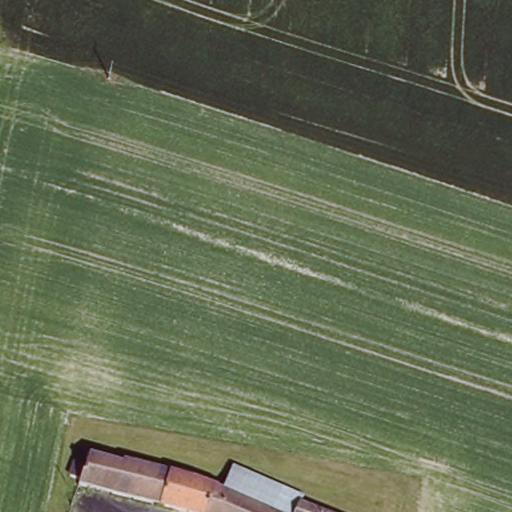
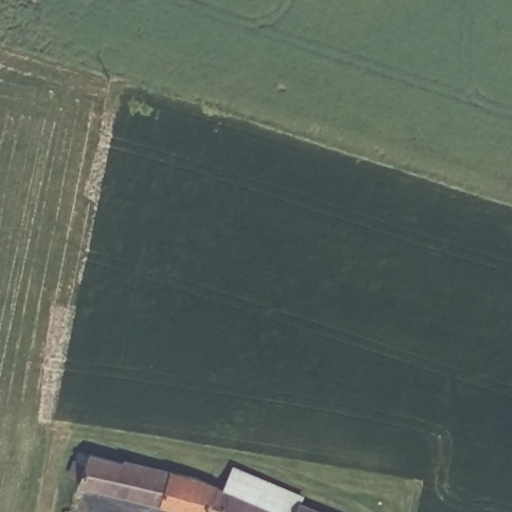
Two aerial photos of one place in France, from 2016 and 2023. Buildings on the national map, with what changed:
unchanged [(80,486),(91,454),(138,468),(139,464),(211,478),(221,482),(242,491),(247,479),(319,508),(329,512),(207,512),(204,511),(80,486)]

